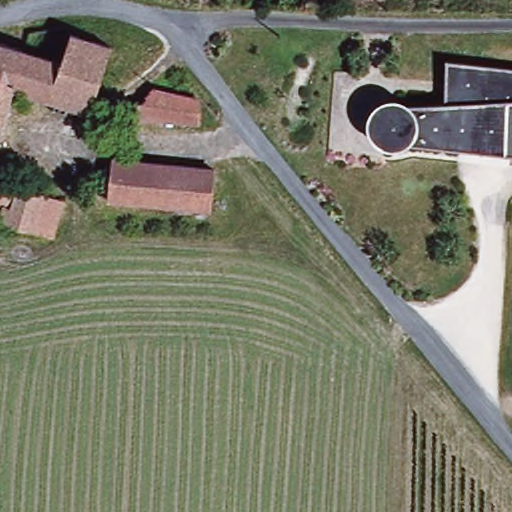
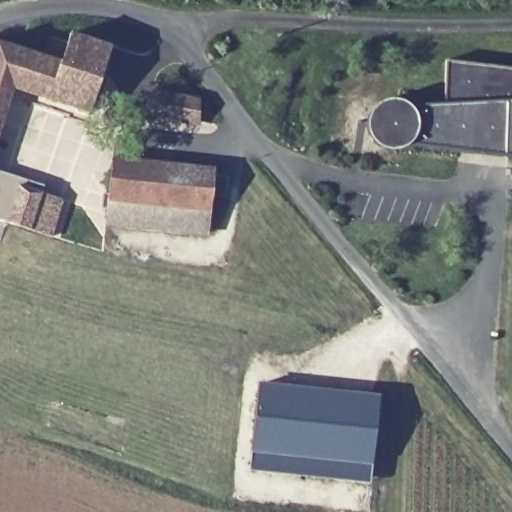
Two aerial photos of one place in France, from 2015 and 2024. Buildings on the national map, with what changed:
unchanged [(12,84),(0,124),(0,37),(60,54),(67,29),(107,41),(87,108),(12,84)]
unchanged [(396,104),(409,107),(445,107),(447,63),(512,70),(512,158),(406,148),(401,151),(384,151),(376,145),(368,136),(367,121),(372,115),(382,104),(396,104)]
unchanged [(202,99),(199,123),(128,111),(152,84),(202,99)]
unchanged [(111,161),(210,172),(205,214),(106,203),(111,161)]
unchanged [(0,216),(0,175),(62,194),(50,232),(0,216)]
new [(256,383),(378,394),(372,459),(250,448),(256,383)]
new [(250,448),(372,459),(370,480),(248,469),(250,448)]

